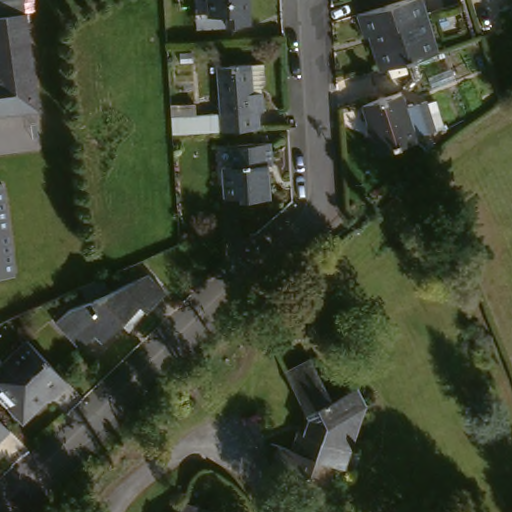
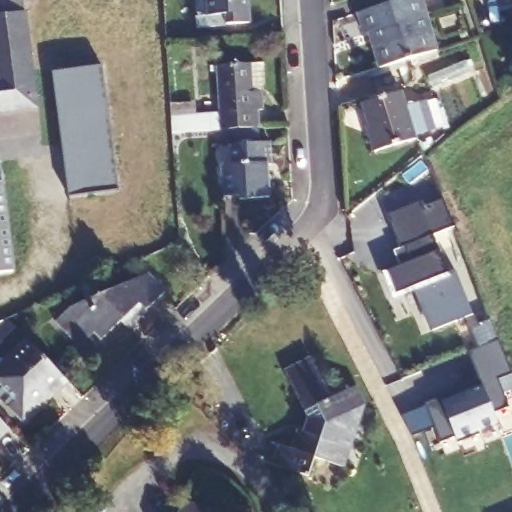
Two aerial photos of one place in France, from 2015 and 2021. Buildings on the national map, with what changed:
unchanged [(204,19),(203,0),(197,0),(244,0),(246,26),(223,28),(195,30),(194,20),(204,19)]
unchanged [(364,37),(359,16),(411,0),(421,0),(438,53),(407,63),(380,72),(370,37),(364,37)]
unchanged [(25,15),(39,112),(0,117),(0,19),(25,15)]
unchanged [(219,109),(216,64),(249,61),(262,60),(265,82),(262,83),(262,92),(264,108),(258,108),(260,127),(171,133),(170,113),(219,109)]
new [(102,65),(120,190),(69,197),(54,71),(102,65)]
unchanged [(392,90),(396,106),(410,102),(417,131),(405,135),(405,139),(369,150),(364,133),(367,132),(358,100),(392,90)]
unchanged [(268,141),(270,161),(268,161),(270,197),(239,200),(239,195),(224,197),(221,165),(232,164),(230,144),(268,141)]
new [(5,181),(6,185),(5,185),(0,186),(0,155),(5,181)]
unchanged [(5,185),(16,272),(0,275),(0,186),(5,185)]
new [(392,251),(397,249),(384,216),(420,202),(422,207),(443,199),(454,227),(433,235),(447,272),(455,270),(472,313),(432,329),(414,286),(393,295),(383,272),(381,273),(381,272),(398,265),(392,251)]
unchanged [(120,324),(100,343),(93,337),(79,350),(55,323),(70,310),(87,302),(80,286),(101,278),(107,293),(145,275),(164,294),(132,324),(125,330),(120,324)]
new [(512,375),(498,379),(510,407),(495,414),(498,423),(477,431),(480,435),(459,443),(457,437),(442,444),(425,403),(456,392),(458,396),(482,386),(469,353),(498,341),(512,375)]
unchanged [(50,401),(48,398),(34,412),(31,410),(20,422),(0,401),(0,391),(1,390),(0,388),(0,368),(28,342),(47,362),(49,364),(68,385),(50,401)]
unchanged [(335,395),(350,387),(360,404),(339,468),(319,462),(312,483),(275,471),(280,450),(301,455),(309,429),(312,423),(288,378),(317,362),(335,395)]
unchanged [(12,437),(0,449),(0,423),(12,437)]
unchanged [(181,512),(175,512),(176,510),(181,512)]

